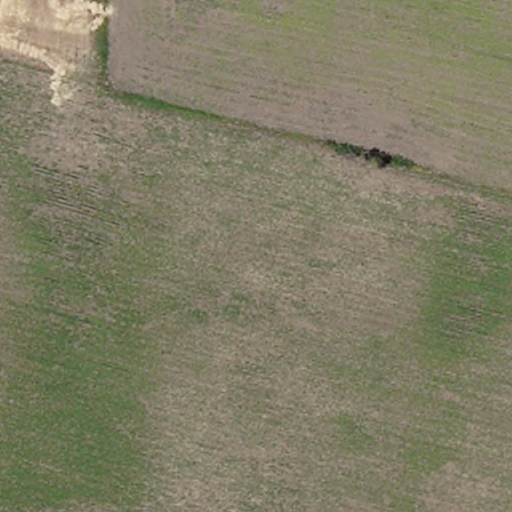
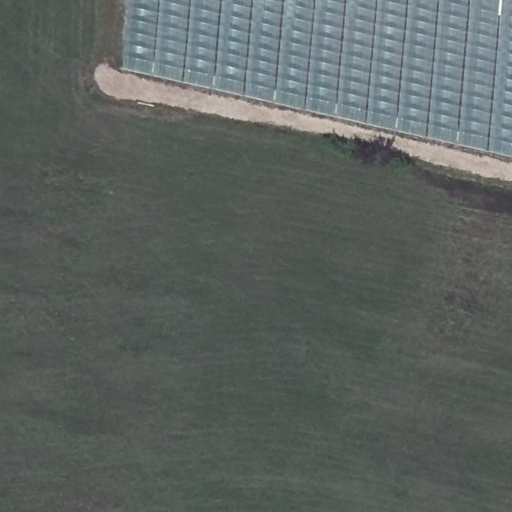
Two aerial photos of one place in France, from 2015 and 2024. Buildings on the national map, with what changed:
new [(132,0),(512,0),(512,158),(127,70),(132,0)]

